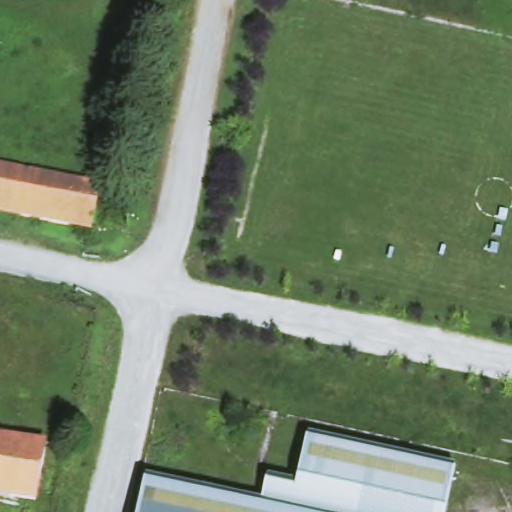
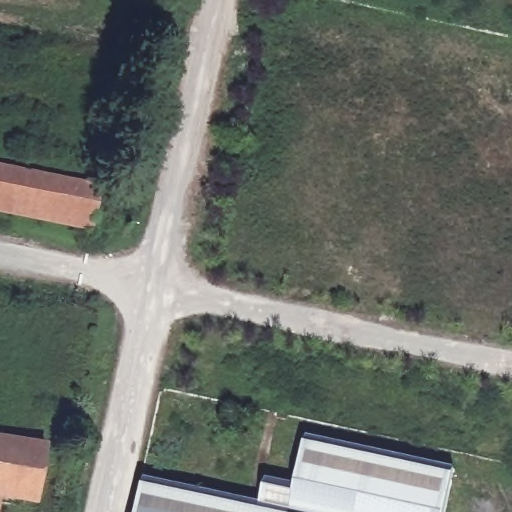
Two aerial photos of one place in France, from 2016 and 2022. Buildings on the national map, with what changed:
unchanged [(94,234),(0,214),(0,164),(104,186),(94,234)]
unchanged [(37,502),(1,495),(0,501),(0,436),(47,445),(37,502)]
unchanged [(142,512),(149,479),(262,503),(268,477),(298,483),(307,440),(357,450),(455,471),(446,512),(142,512)]

